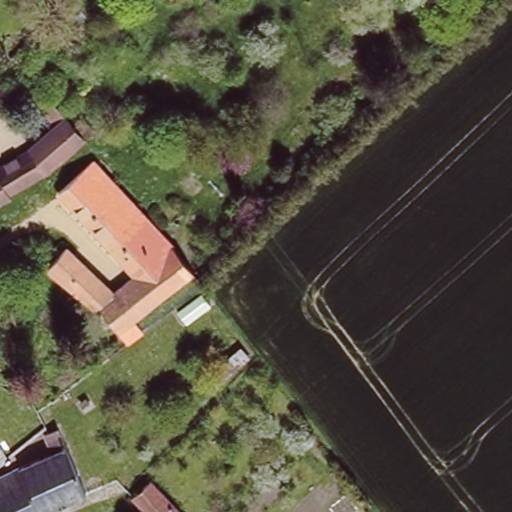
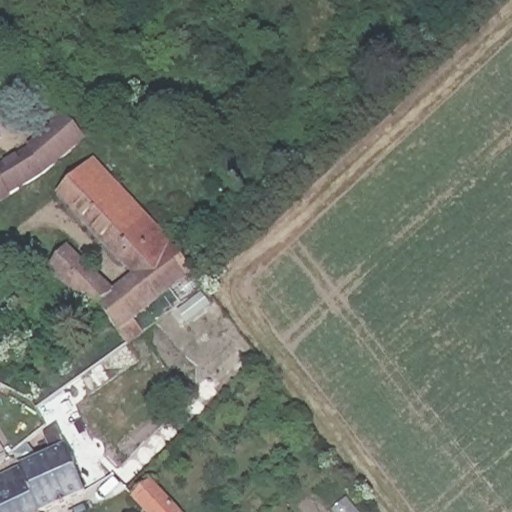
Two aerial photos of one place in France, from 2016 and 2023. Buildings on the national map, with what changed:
unchanged [(23,92),(32,79),(87,142),(62,164),(0,201),(0,164),(56,130),(23,92)]
unchanged [(99,168),(140,214),(191,269),(140,321),(150,337),(134,350),(100,307),(99,310),(52,272),(72,250),(120,290),(135,276),(69,193),(99,168)]
unchanged [(56,452),(38,444),(50,433),(74,448),(96,502),(72,512),(0,512),(0,485),(57,460),(56,452)]
unchanged [(0,450),(10,465),(0,474),(0,450)]
unchanged [(148,480),(177,512),(142,512),(129,497),(148,480)]

